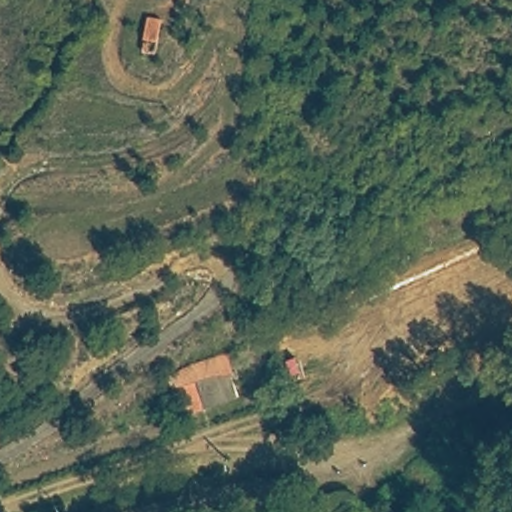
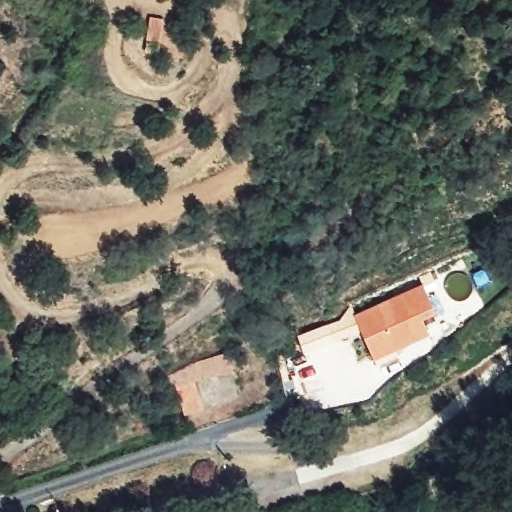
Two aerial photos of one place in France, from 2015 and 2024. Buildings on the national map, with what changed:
unchanged [(143,53),(149,15),(168,17),(162,56),(143,53)]
new [(355,318),(425,285),(437,313),(423,318),(430,334),(375,360),(355,318)]
new [(222,368),(231,396),(180,414),(168,385),(222,368)]

